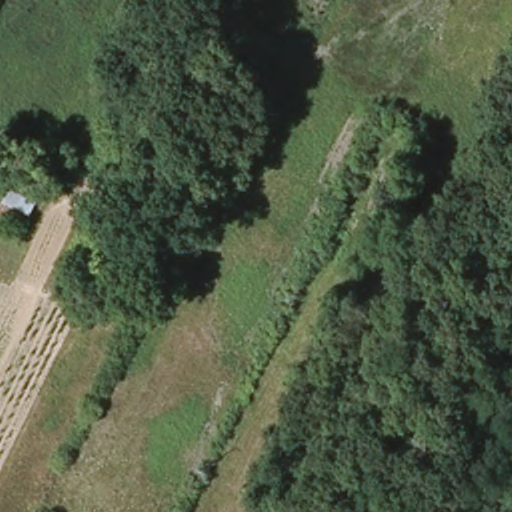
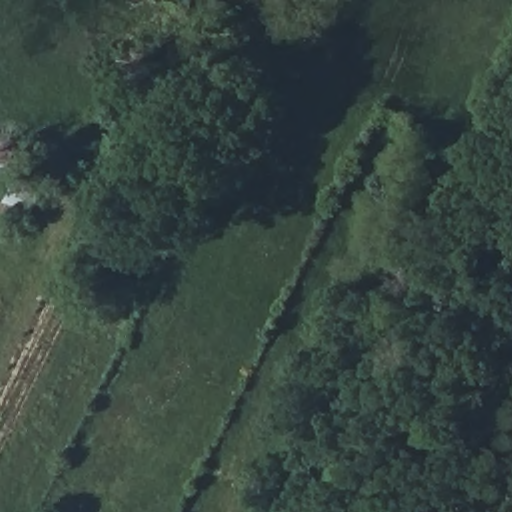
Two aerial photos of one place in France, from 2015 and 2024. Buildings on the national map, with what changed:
unchanged [(0,212),(0,198),(10,174),(0,170),(0,139),(53,161),(22,223),(0,212)]

